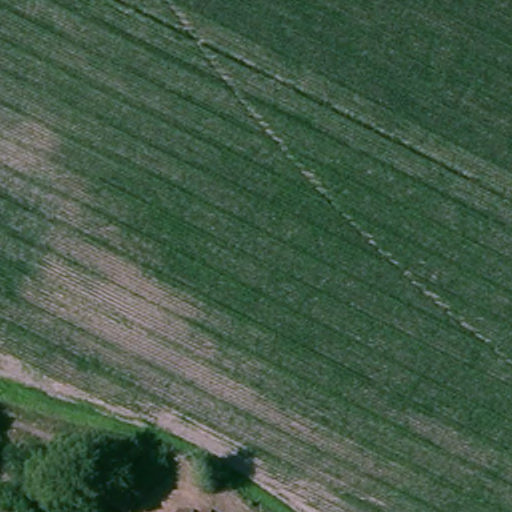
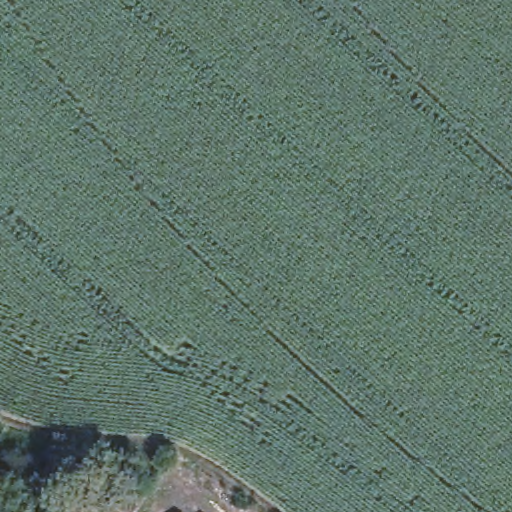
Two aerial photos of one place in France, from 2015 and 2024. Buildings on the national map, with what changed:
unchanged [(100,505),(114,512),(97,512),(100,505)]

